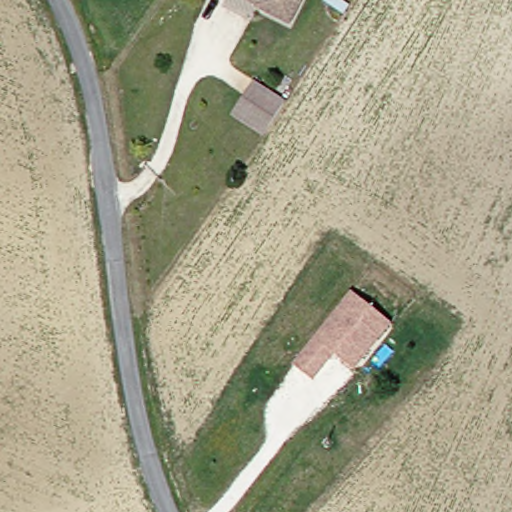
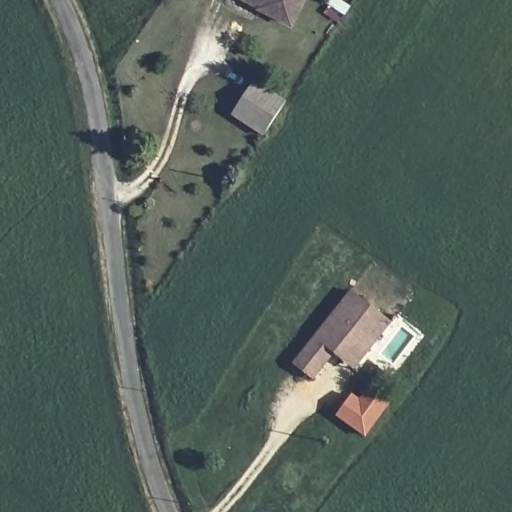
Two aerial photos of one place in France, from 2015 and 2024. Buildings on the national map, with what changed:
unchanged [(282,29),(254,9),(257,3),(252,0),(301,0),(282,29)]
unchanged [(225,118),(245,85),(278,106),(257,140),(225,118)]
unchanged [(336,363),(327,355),(305,380),(285,362),(348,294),(387,331),(357,361),(346,372),(336,363)]
new [(366,388),(387,405),(363,438),(335,417),(352,394),(357,399),(366,388)]

